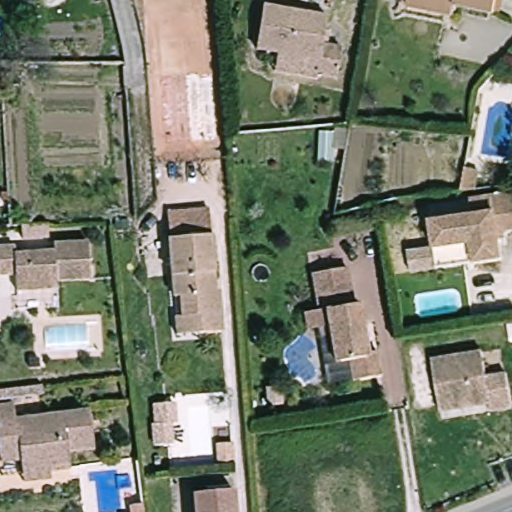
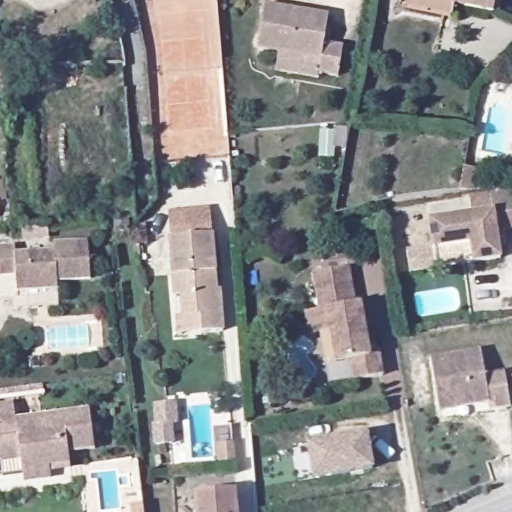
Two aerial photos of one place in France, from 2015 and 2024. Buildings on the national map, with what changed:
unchanged [(410,5),(411,0),(500,0),(497,13),(459,4),(457,14),(410,5)]
unchanged [(283,48),(260,44),(268,1),(332,12),(328,39),(347,42),(341,71),(322,68),(323,63),(282,55),(283,48)]
unchanged [(16,62),(16,74),(0,74),(0,61),(16,62)]
unchanged [(481,168),(476,189),(463,190),(468,166),(481,168)]
unchanged [(476,215),(473,198),(512,192),(512,229),(501,231),(506,258),(480,262),(442,267),(415,271),(412,250),(440,246),(436,220),(476,215)]
unchanged [(203,321),(187,323),(187,321),(185,301),(180,301),(175,243),(173,217),(188,215),(214,213),(221,295),(225,295),(228,335),(205,338),(203,321)]
unchanged [(20,253),(60,251),(60,243),(93,242),(95,279),(62,280),(62,288),(21,290),(20,273),(2,274),(1,246),(20,245),(20,253)]
unchanged [(351,303),(356,302),(364,350),(374,349),(378,373),(350,378),(347,358),(332,360),(326,323),(305,326),(303,310),(316,308),(310,270),(345,265),(351,303)]
unchanged [(183,340),(181,321),(187,321),(203,321),(205,338),(183,340)]
unchanged [(436,360),(486,352),(490,377),(510,374),(512,385),(512,409),(495,412),(493,405),(476,408),(445,413),(444,405),(436,360)]
unchanged [(271,387),(283,386),(285,403),(272,404),(271,387)]
new [(156,422),(155,403),(175,402),(176,423),(170,424),(172,443),(155,444),(154,422),(156,422)]
unchanged [(27,473),(7,476),(5,461),(3,443),(1,430),(0,430),(0,405),(18,403),(20,419),(94,410),(100,448),(73,451),(75,462),(75,467),(55,470),(55,477),(28,481),(27,473)]
new [(367,433),(374,467),(315,478),(308,443),(367,433)]
unchanged [(220,464),(218,443),(232,442),(235,463),(220,464)]
unchanged [(240,490),(241,512),(201,512),(200,493),(240,490)]

